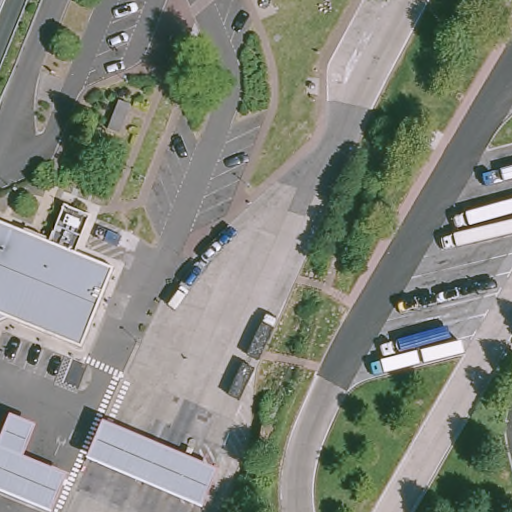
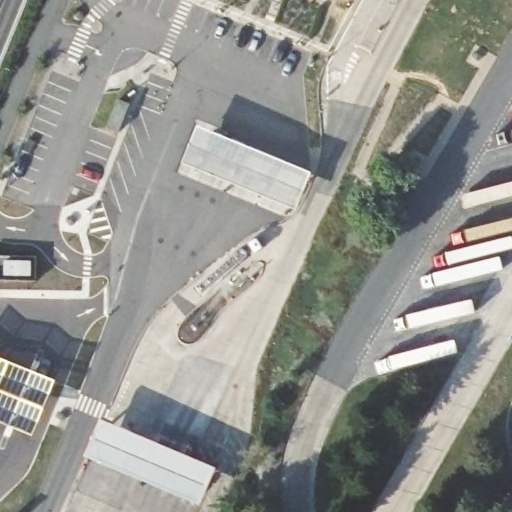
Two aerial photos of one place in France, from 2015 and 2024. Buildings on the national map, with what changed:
new [(131,104),(119,134),(107,129),(118,99),(131,104)]
demolished [(100,129),(89,158),(76,153),(87,124),(100,129)]
new [(197,126),(311,173),(296,211),(181,163),(197,126)]
demolished [(118,268),(84,351),(1,318),(0,318),(0,219),(118,268)]
new [(0,423),(0,358),(56,381),(34,437),(0,423)]
demolished [(5,416),(35,428),(23,461),(69,480),(56,512),(45,512),(0,494),(0,428),(5,416)]
unchanged [(99,423),(220,473),(203,509),(85,460),(99,423)]

